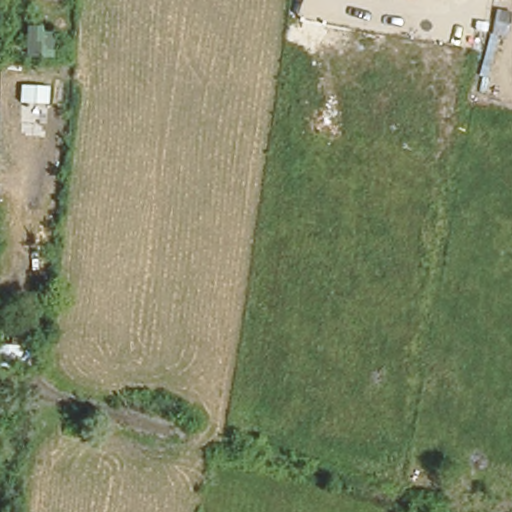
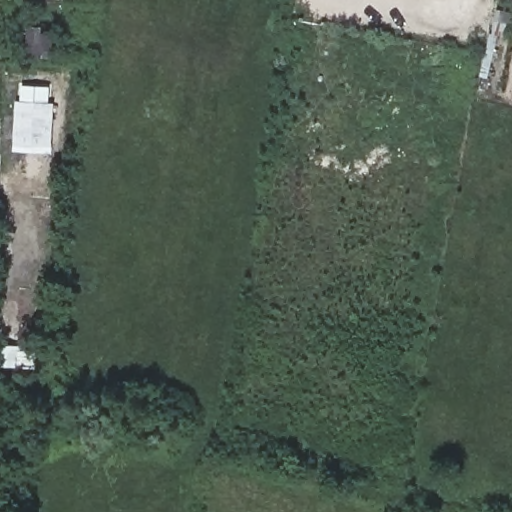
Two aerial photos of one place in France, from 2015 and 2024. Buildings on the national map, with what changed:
unchanged [(34,44),(34,54),(14,51),(14,42),(34,44)]
new [(20,86),(49,87),(48,103),(54,104),(50,154),(16,152),(20,86)]
unchanged [(0,368),(0,344),(23,345),(23,368),(0,368)]

